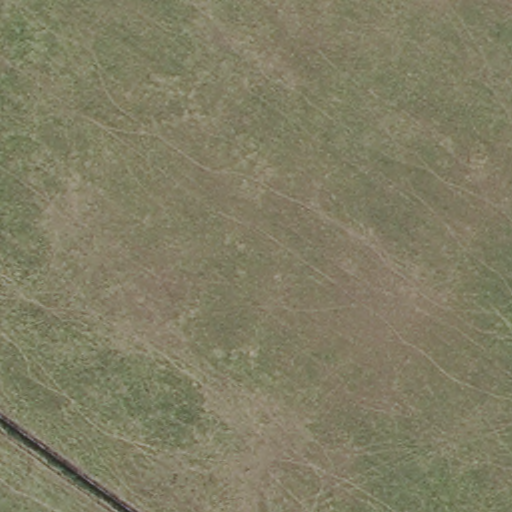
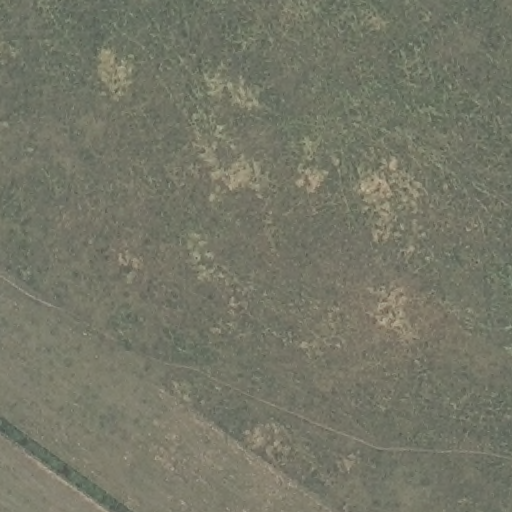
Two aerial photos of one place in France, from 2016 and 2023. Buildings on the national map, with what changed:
[]

